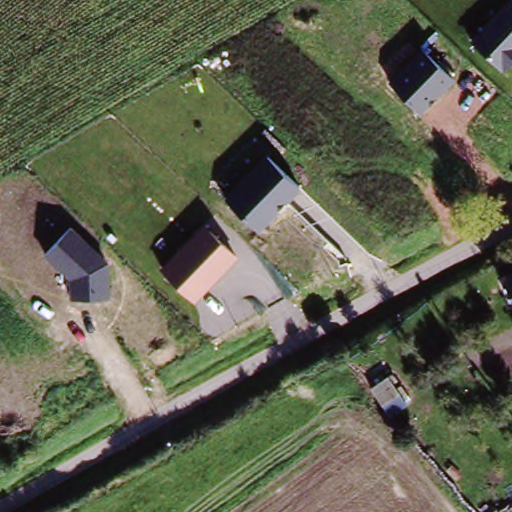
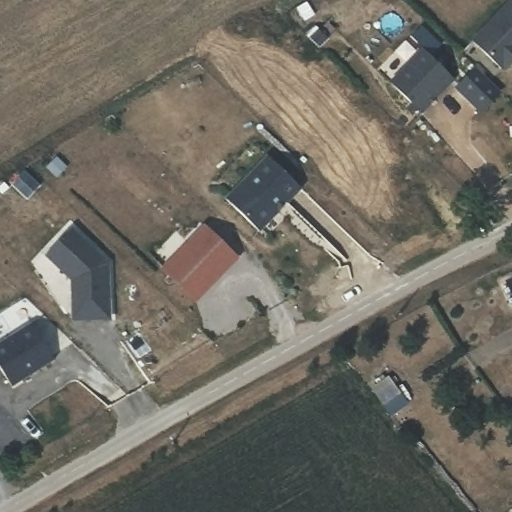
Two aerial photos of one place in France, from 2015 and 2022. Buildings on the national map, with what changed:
unchanged [(501,71),(469,42),(508,0),(512,0),(512,58),(501,71)]
unchanged [(456,80),(421,116),(388,81),(423,47),(456,80)]
unchanged [(266,156),(301,189),(259,232),(224,199),(266,156)]
unchanged [(203,225),(238,260),(193,305),(158,271),(203,225)]
unchanged [(72,277),(48,254),(73,227),(109,261),(110,318),(73,318),(72,277)]
unchanged [(512,277),(512,307),(506,309),(497,282),(512,277)]
new [(56,361),(13,389),(0,368),(0,346),(31,325),(56,361)]
unchanged [(373,397),(386,384),(399,397),(386,410),(373,397)]

